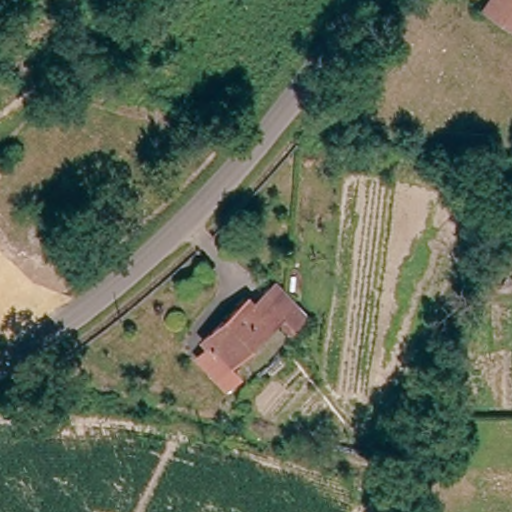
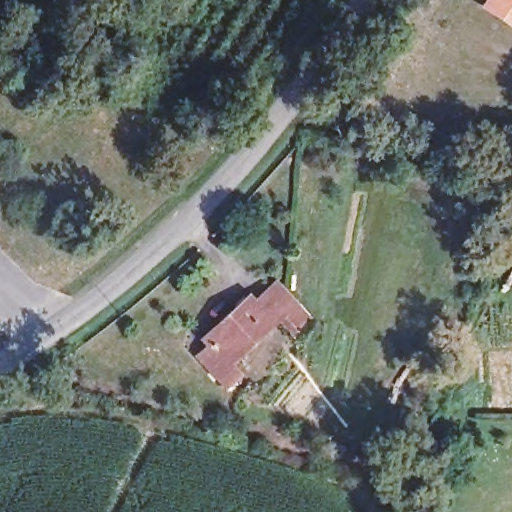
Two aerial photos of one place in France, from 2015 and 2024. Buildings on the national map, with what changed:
unchanged [(480,6),(484,0),(512,0),(512,27),(511,28),(480,6)]
unchanged [(232,379),(220,390),(195,361),(207,351),(200,342),(242,304),(248,311),(264,297),(278,284),(308,319),(294,332),(282,318),(224,369),(232,379)]

